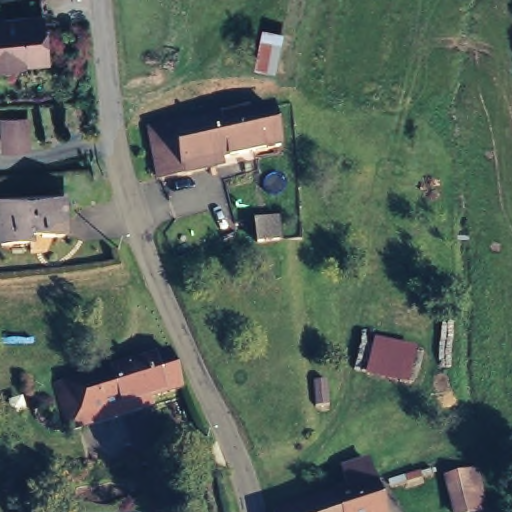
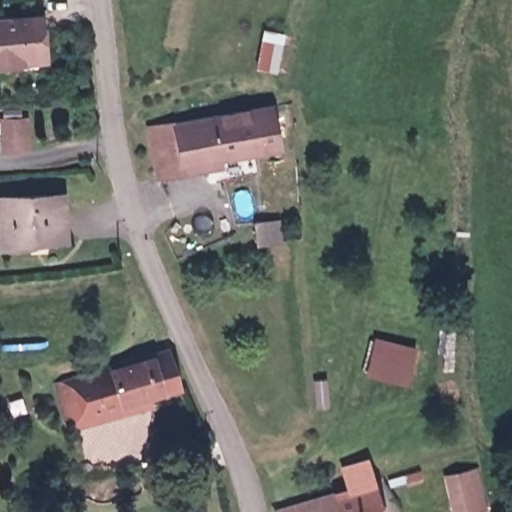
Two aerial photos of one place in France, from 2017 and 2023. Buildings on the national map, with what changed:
unchanged [(6,64),(0,64),(0,15),(39,10),(42,52),(42,60),(6,64)]
unchanged [(287,32),(278,75),(256,70),(264,25),(287,32)]
unchanged [(270,147),(177,166),(177,171),(153,175),(146,130),(193,121),(194,122),(263,107),(270,147)]
unchanged [(26,114),(30,144),(2,148),(0,133),(0,118),(26,114)]
unchanged [(63,195),(65,234),(33,236),(32,241),(1,242),(0,220),(0,198),(63,195)]
unchanged [(291,224),(294,248),(271,253),(268,230),(291,224)]
unchanged [(416,345),(408,382),(362,371),(372,330),(416,345)]
unchanged [(177,377),(85,408),(88,415),(71,419),(58,377),(166,341),(177,377)]
unchanged [(364,457),(371,478),(382,512),(275,512),(347,487),(340,466),(364,457)]
unchanged [(482,507),(464,512),(448,512),(438,469),(471,460),(482,507)]

